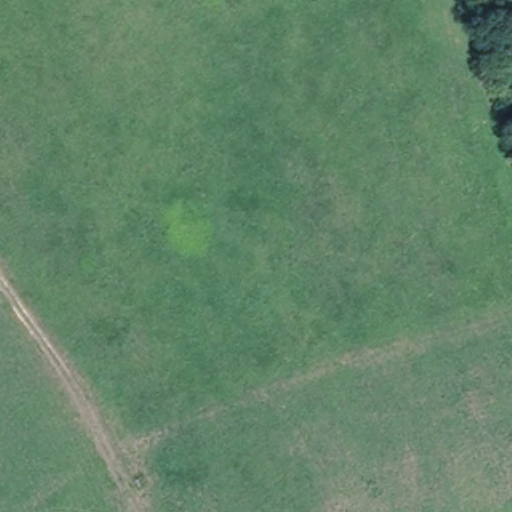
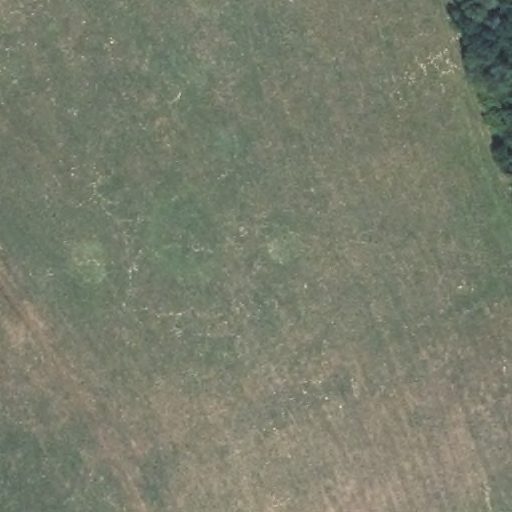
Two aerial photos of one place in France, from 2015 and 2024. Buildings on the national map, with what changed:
[]

